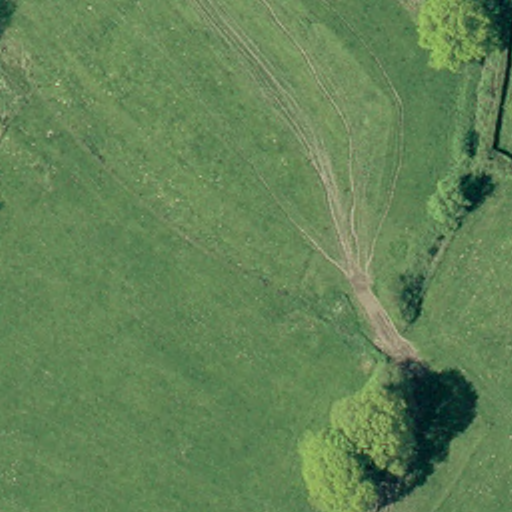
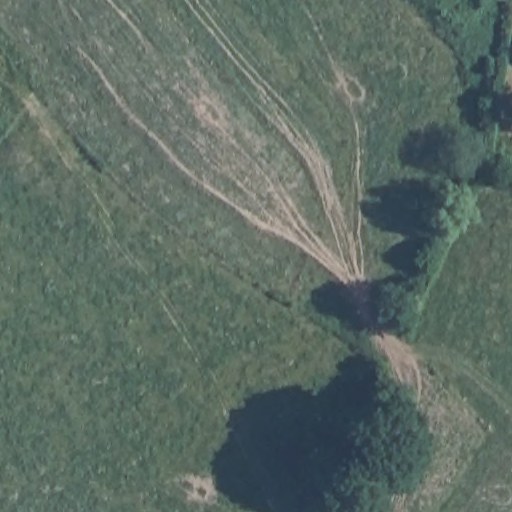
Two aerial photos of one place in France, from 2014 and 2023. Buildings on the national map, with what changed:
[]

